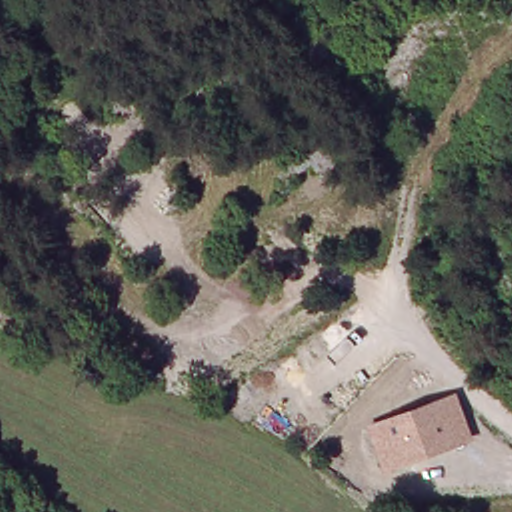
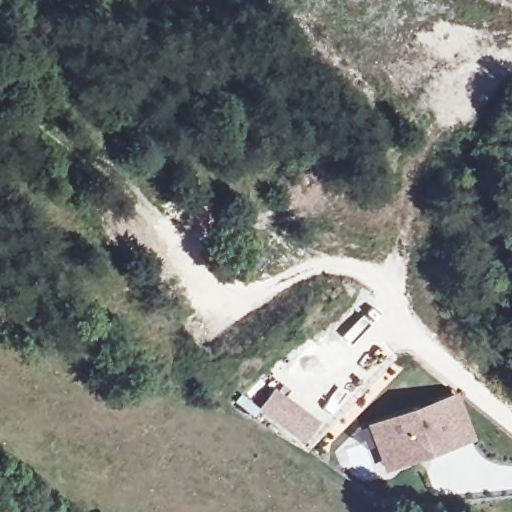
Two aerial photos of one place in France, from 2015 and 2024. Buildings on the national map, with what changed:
new [(320,422),(304,444),(260,411),(276,389),(320,422)]
unchanged [(473,440),(384,473),(367,425),(456,393),(473,440)]

